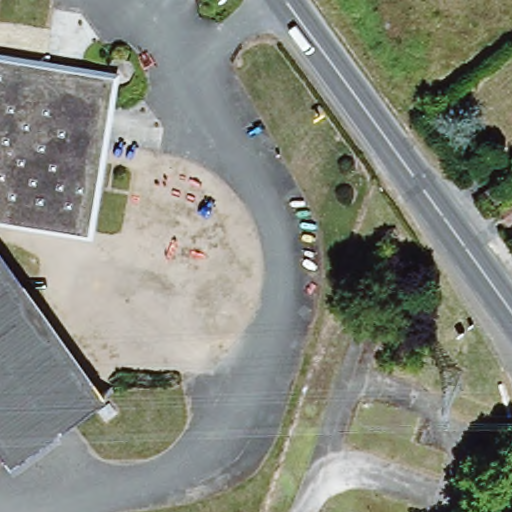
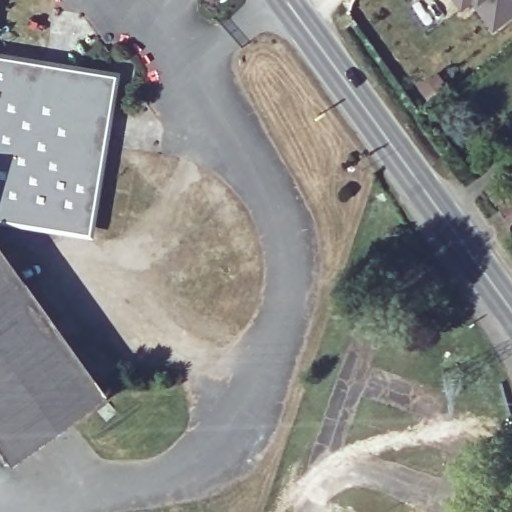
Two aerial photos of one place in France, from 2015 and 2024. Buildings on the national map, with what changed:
new [(458,0),(471,0),(462,6),(458,0)]
new [(512,13),(493,26),(483,12),(474,0),(512,0),(512,13)]
unchanged [(21,71),(20,77),(86,90),(84,99),(93,101),(81,168),(89,169),(74,237),(0,221),(0,67),(21,71)]
unchanged [(498,207),(484,189),(499,179),(512,197),(512,218),(508,220),(498,207)]
unchanged [(89,402),(11,455),(0,440),(0,274),(89,402)]

